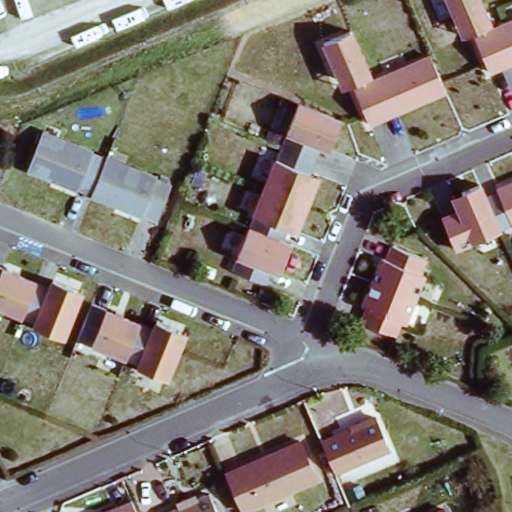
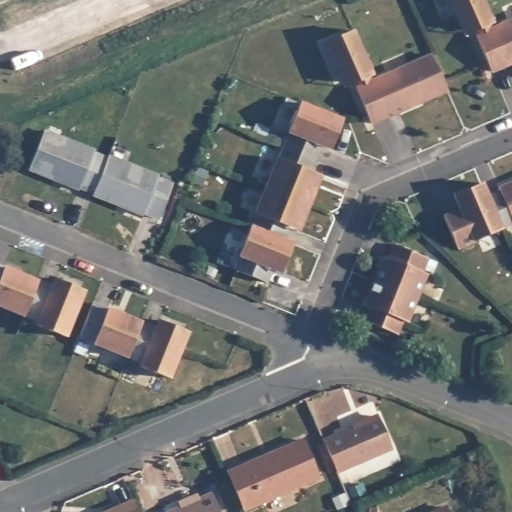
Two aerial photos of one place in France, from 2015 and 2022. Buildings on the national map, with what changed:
unchanged [(512,24),(512,64),(491,73),(472,29),(463,31),(460,22),(450,0),(480,0),(493,31),(512,24)]
unchanged [(351,29),(373,80),(428,57),(443,92),(367,125),(348,79),(338,83),(334,72),(321,41),(351,29)]
unchanged [(268,268),(262,283),(228,270),(295,102),(338,119),(330,138),(326,148),(318,145),(307,173),(315,177),(311,186),(297,221),(293,231),(285,228),(278,243),(287,247),(281,261),(277,271),(268,268)]
unchanged [(69,134),(100,146),(98,149),(131,162),(132,159),(165,172),(163,175),(177,180),(164,214),(150,209),(148,212),(127,203),(127,200),(86,183),(84,186),(75,182),(62,177),(63,174),(35,163),(49,129),(53,131),(68,137),(69,134)]
unchanged [(500,227),(500,229),(457,248),(443,215),(468,204),(463,191),(481,184),(486,196),(500,190),(498,187),(512,181),(512,222),(500,227)]
unchanged [(419,271),(425,272),(407,319),(401,318),(396,332),(360,319),(365,305),(361,303),(378,256),(382,257),(387,243),(425,257),(419,271)]
unchanged [(40,318),(0,302),(0,262),(54,284),(56,278),(57,275),(78,283),(87,286),(80,302),(78,310),(68,333),(39,322),(40,318)]
unchanged [(158,324),(162,316),(182,325),(191,329),(185,345),(172,376),(143,363),(145,359),(107,344),(83,334),(89,318),(96,300),(158,324)]
unchanged [(323,439),(378,416),(392,449),(337,472),(323,439)]
unchanged [(230,468),(305,437),(320,475),(245,506),(230,468)]
unchanged [(226,512),(173,512),(172,510),(185,504),(182,500),(202,491),(205,496),(217,490),(226,512)]
unchanged [(135,500),(140,512),(102,512),(135,500)]
unchanged [(456,502),(461,512),(432,512),(456,502)]

